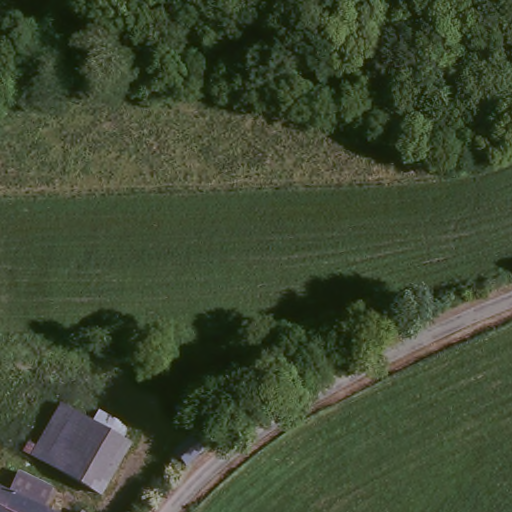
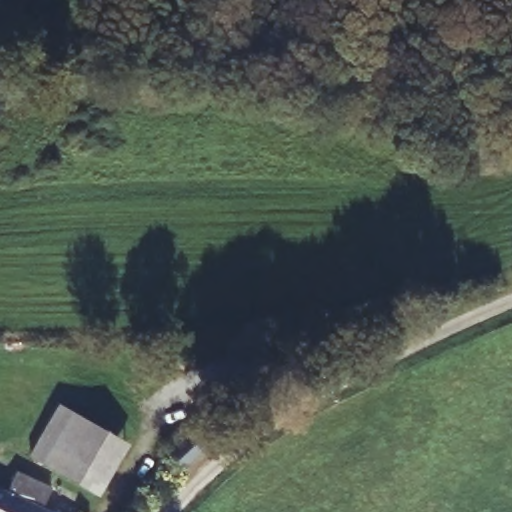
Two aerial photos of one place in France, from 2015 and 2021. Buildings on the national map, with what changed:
unchanged [(35,454),(66,403),(131,441),(101,493),(35,454)]
unchanged [(0,488),(6,491),(16,471),(50,486),(41,507),(51,512),(0,512),(0,488)]
unchanged [(79,511),(80,512),(78,512),(79,511)]

